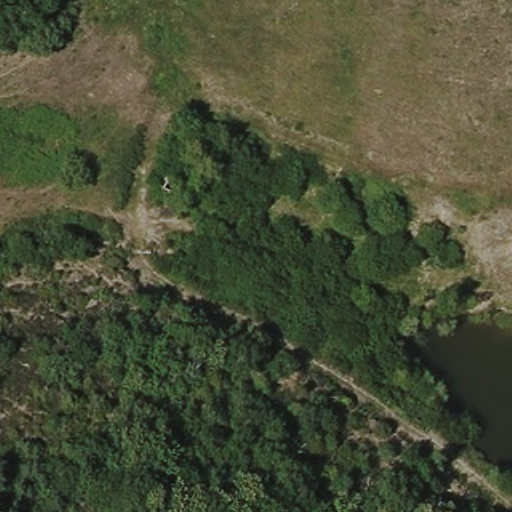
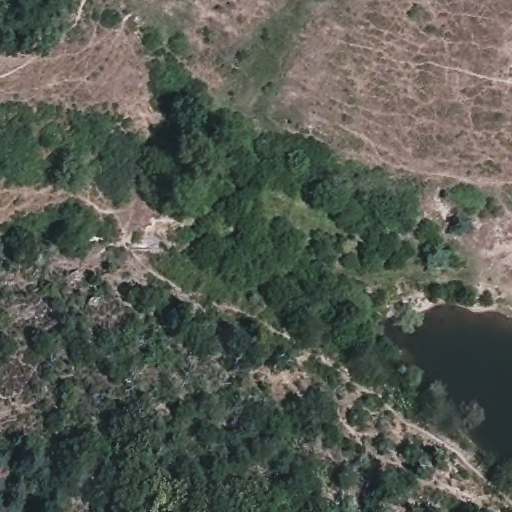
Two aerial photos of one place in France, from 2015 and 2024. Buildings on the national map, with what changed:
unchanged [(187,170),(177,193),(164,186),(175,162),(187,170)]

